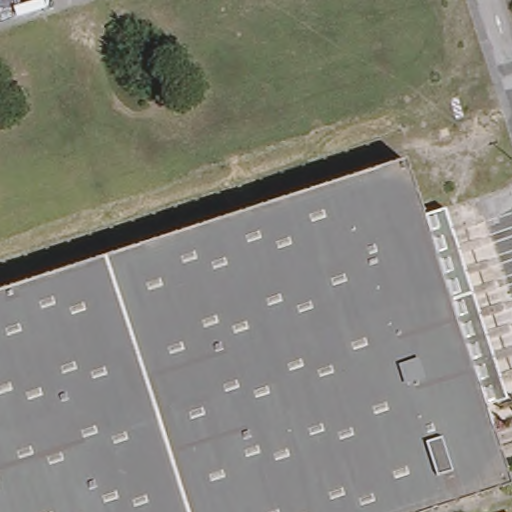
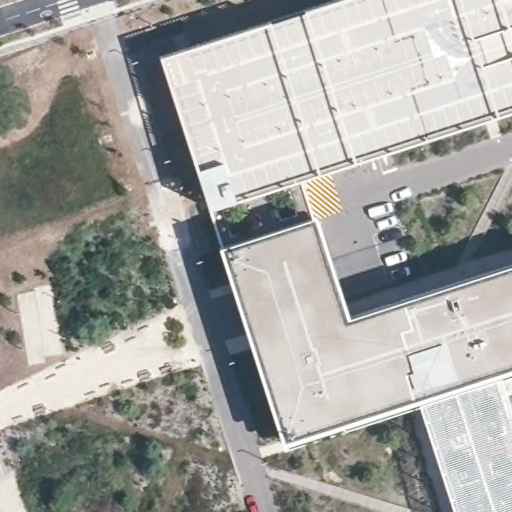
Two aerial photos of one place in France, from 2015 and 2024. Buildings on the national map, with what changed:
new [(512,0),(512,109),(302,179),(347,317),(512,264),(512,368),(498,372),(512,415),(512,512),(455,512),(420,400),(285,443),(160,56),(331,0),(512,0)]
demolished [(408,154),(512,477),(512,479),(413,512),(0,512),(0,286),(321,182),(408,154)]

